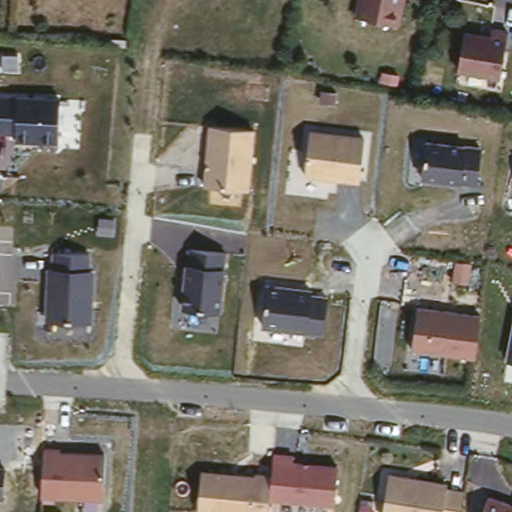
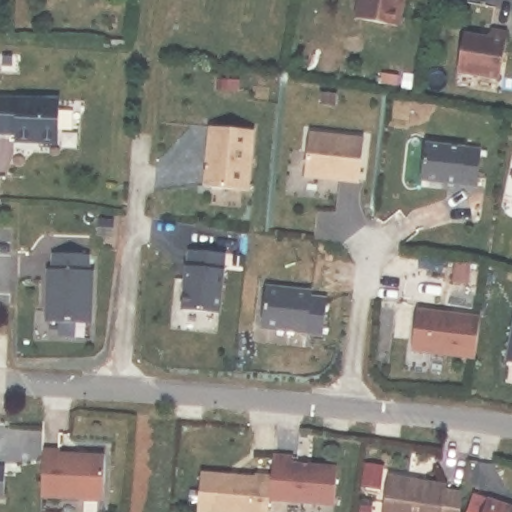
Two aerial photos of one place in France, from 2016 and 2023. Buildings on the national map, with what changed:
unchanged [(400,0),(395,28),(353,22),(357,0),(400,0)]
unchanged [(460,36),(485,41),(487,32),(502,34),(496,79),(454,72),(460,36)]
unchanged [(56,144),(15,143),(16,133),(0,132),(0,96),(58,99),(56,144)]
unchanged [(207,126),(254,131),(250,191),(201,186),(207,126)]
unchanged [(307,132),(365,137),(361,182),(302,177),(307,132)]
unchanged [(422,142),(480,147),(477,184),(420,181),(422,142)]
unchanged [(187,250),(224,255),(219,313),(181,309),(187,250)]
unchanged [(44,268),(50,269),(51,254),(90,256),(90,271),(95,272),(94,322),(41,321),(44,268)]
unchanged [(264,287),(310,291),(311,297),(326,299),(324,332),(306,330),(260,326),(264,287)]
unchanged [(415,308),(480,316),(476,357),(410,350),(415,308)]
unchanged [(512,323),(512,363),(505,362),(512,323)]
unchanged [(44,451),(104,455),(102,496),(40,493),(44,451)]
unchanged [(200,472),(255,477),(255,472),(273,475),(274,454),(295,456),(294,462),(338,466),(335,505),(270,498),(269,512),(198,512),(200,472)]
unchanged [(0,466),(5,466),(3,499),(0,499),(0,466)]
unchanged [(390,475),(447,483),(446,488),(465,491),(461,512),(384,512),(390,475)]
unchanged [(487,497),(512,506),(512,512),(482,512),(487,497)]

